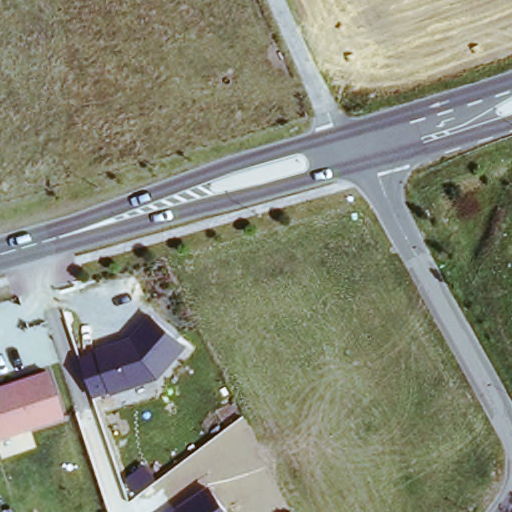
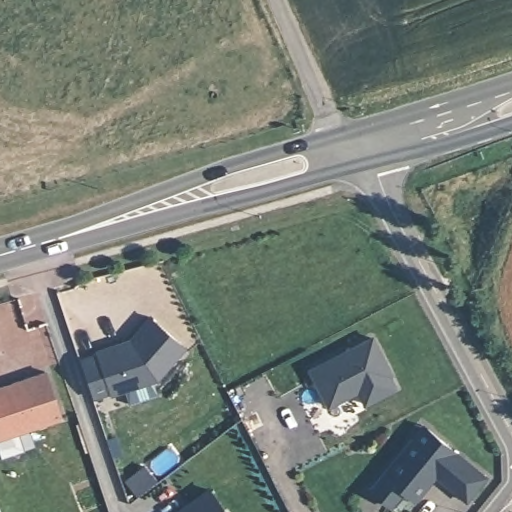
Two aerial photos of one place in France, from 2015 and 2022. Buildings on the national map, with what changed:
unchanged [(186,347),(154,382),(110,396),(95,353),(129,342),(148,318),(186,347)]
new [(376,338),(394,374),(392,375),(399,388),(369,405),(361,391),(332,406),(313,370),(376,338)]
unchanged [(0,443),(0,388),(44,372),(61,422),(0,443)]
new [(418,423),(423,427),(481,475),(462,498),(430,473),(409,499),(398,489),(385,505),(364,488),(407,437),(418,423)]
unchanged [(228,512),(175,512),(211,486),(228,512)]

